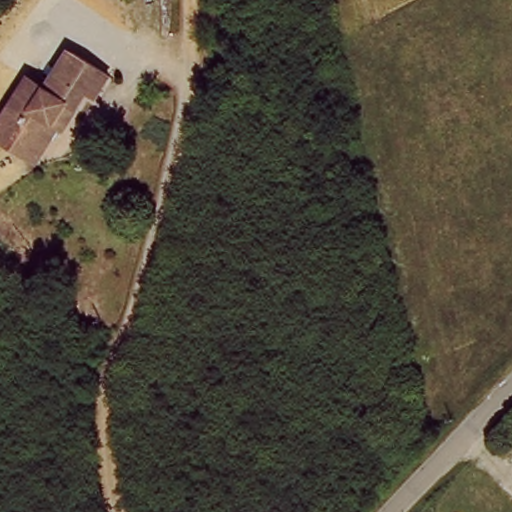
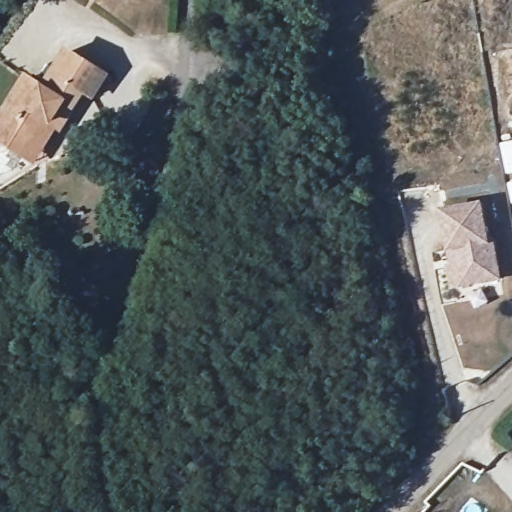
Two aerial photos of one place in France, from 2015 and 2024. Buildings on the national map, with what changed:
unchanged [(21,158),(13,149),(0,135),(0,109),(37,76),(50,90),(85,60),(116,96),(96,113),(90,105),(70,122),(58,132),(55,129),(21,158)]
new [(512,140),(512,173),(505,175),(498,142),(512,140)]
new [(482,202),(490,239),(496,239),(502,283),(452,292),(447,267),(451,266),(448,254),(440,211),(482,202)]

